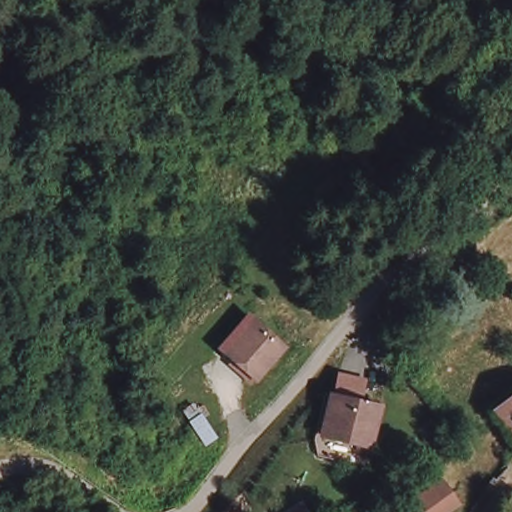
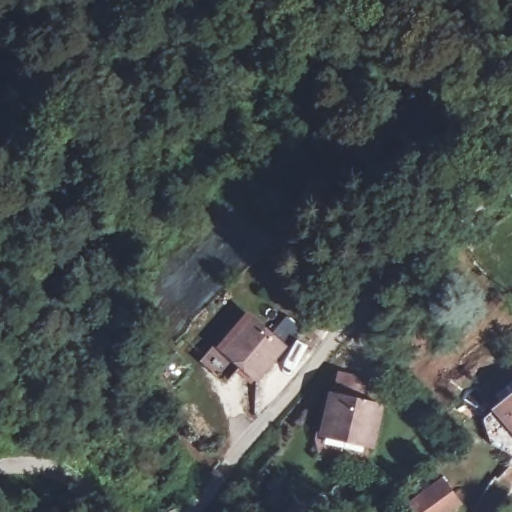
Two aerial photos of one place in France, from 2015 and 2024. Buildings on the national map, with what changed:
unchanged [(257,315),(286,343),(254,373),(226,345),(257,315)]
unchanged [(389,405),(373,446),(324,426),(340,386),(389,405)]
unchanged [(494,403),(512,392),(512,426),(494,403)]
unchanged [(440,493),(449,507),(441,512),(412,512),(440,493)]

